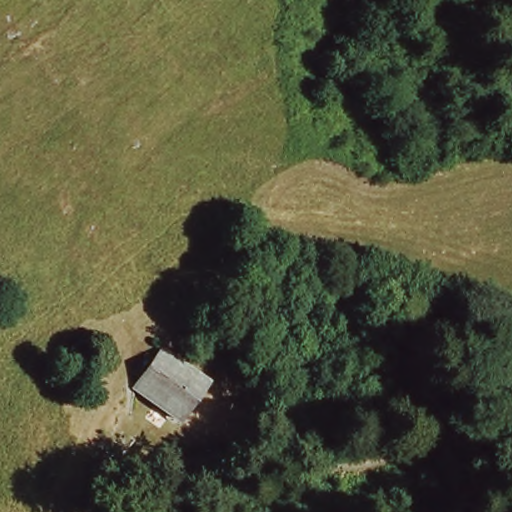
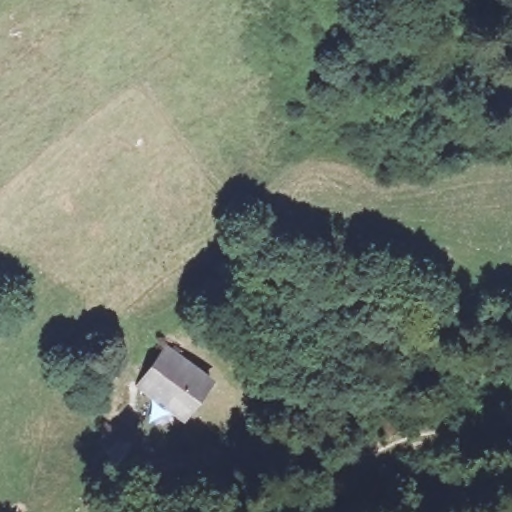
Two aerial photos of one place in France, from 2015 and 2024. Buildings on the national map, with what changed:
unchanged [(207,369),(182,417),(137,395),(164,347),(207,369)]

